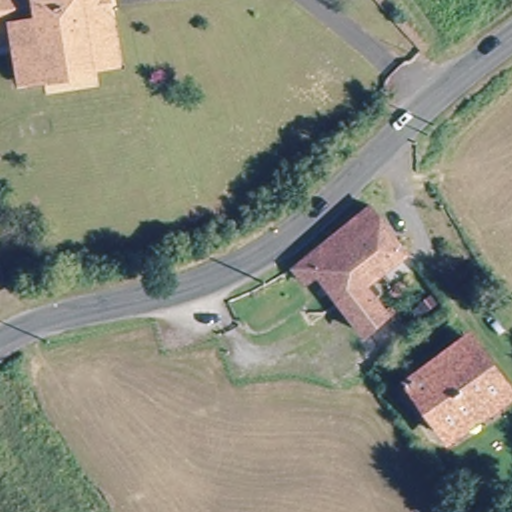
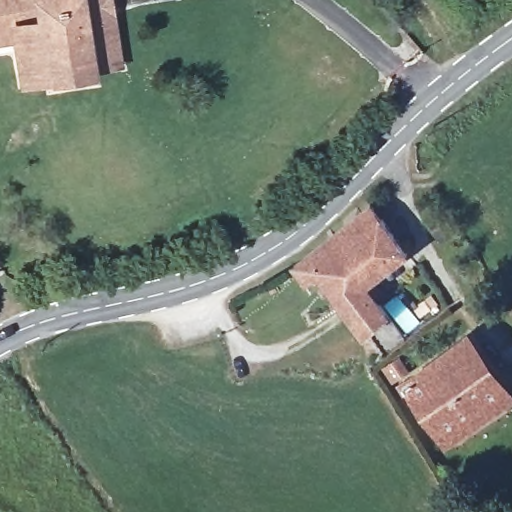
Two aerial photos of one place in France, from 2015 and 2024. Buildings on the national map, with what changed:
unchanged [(117,61),(46,72),(48,89),(19,94),(13,48),(0,50),(0,0),(107,0),(117,61)]
unchanged [(48,89),(46,72),(117,61),(120,80),(48,89)]
unchanged [(366,287),(327,239),(368,205),(409,253),(366,287)]
unchanged [(390,316),(367,335),(316,274),(302,283),(292,270),(327,239),(366,287),(390,316)]
unchanged [(512,387),(512,390),(452,433),(418,386),(405,396),(398,385),(469,333),(512,387)]

